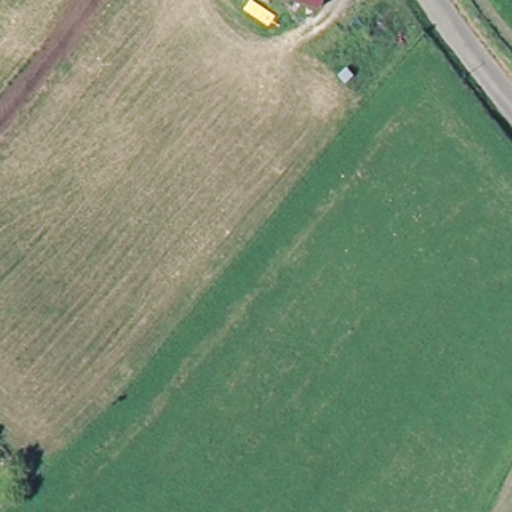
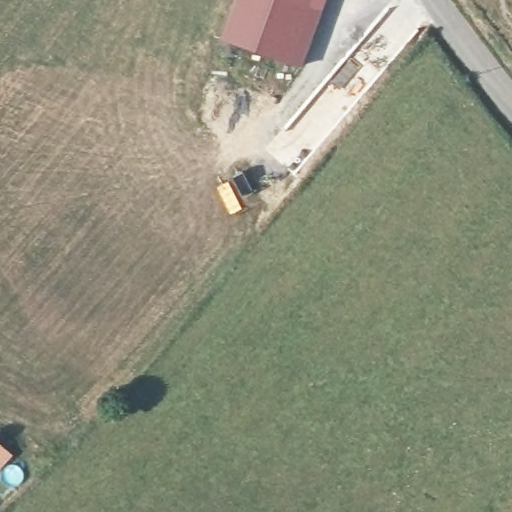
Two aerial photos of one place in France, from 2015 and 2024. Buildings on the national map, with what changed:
new [(303,65),(219,37),(233,0),(297,0),(323,9),(303,65)]
unchanged [(323,9),(297,0),(327,0),(323,9)]

